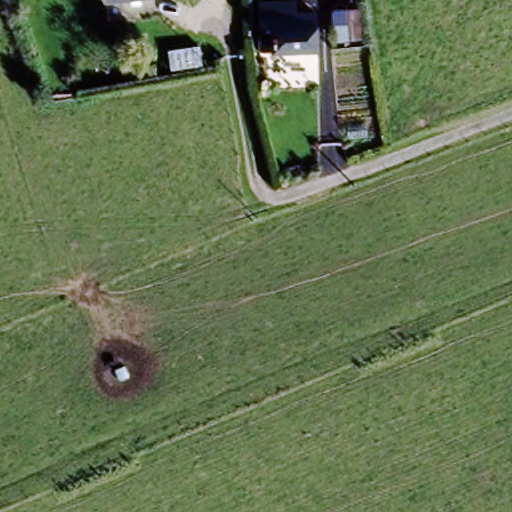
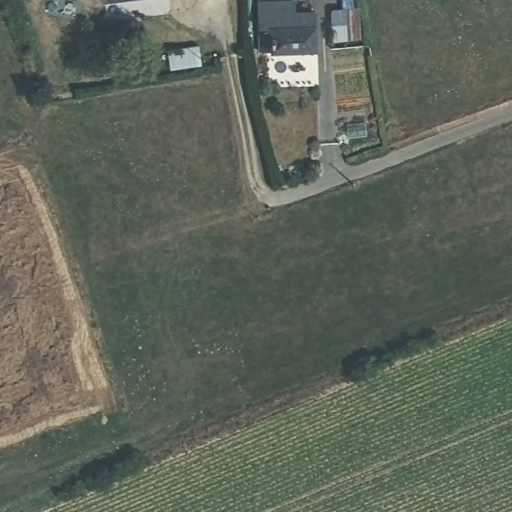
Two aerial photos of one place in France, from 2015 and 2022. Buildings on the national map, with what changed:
unchanged [(243,38),(242,18),(262,18),(263,2),(320,5),(320,20),(320,41),(243,38)]

